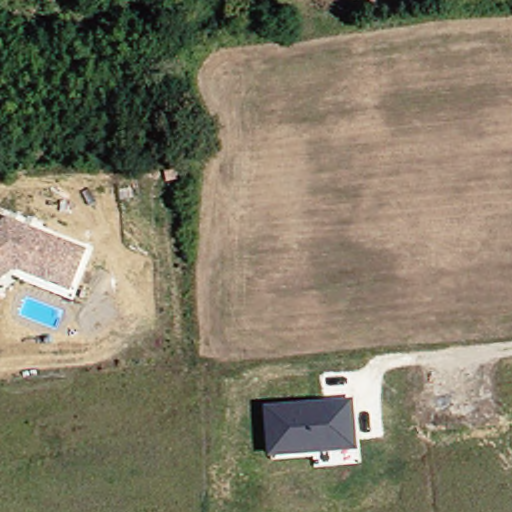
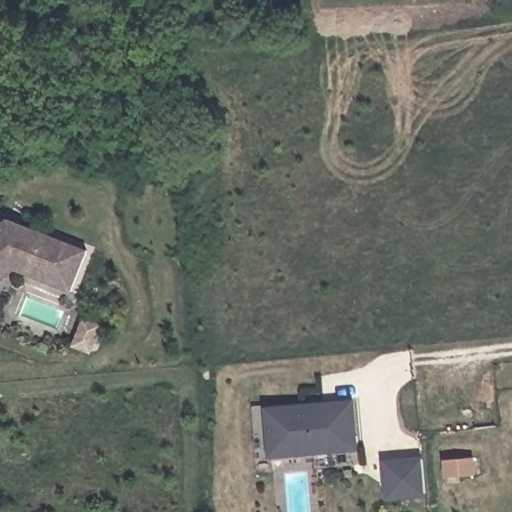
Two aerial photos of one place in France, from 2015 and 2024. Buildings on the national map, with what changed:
unchanged [(86,247),(70,288),(12,266),(0,276),(0,220),(6,215),(86,247)]
unchanged [(360,453),(270,460),(266,409),(355,401),(360,453)]
new [(383,459),(423,456),(426,498),(386,500),(383,459)]

